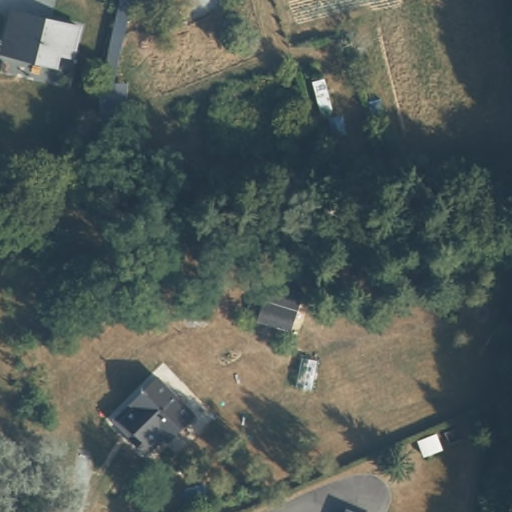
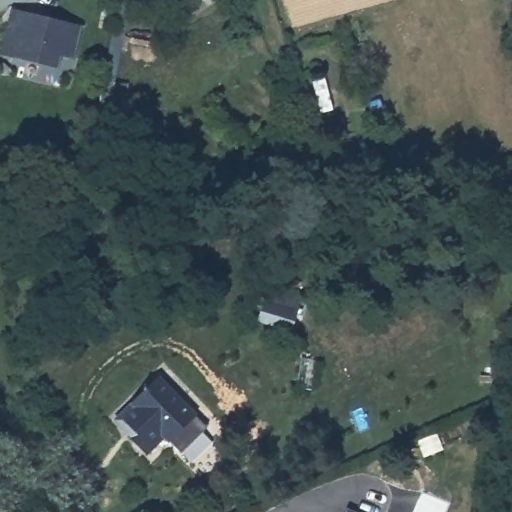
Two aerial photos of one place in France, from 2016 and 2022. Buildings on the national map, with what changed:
unchanged [(170,3),(150,0),(171,0),(170,3)]
unchanged [(79,20),(65,66),(0,51),(0,49),(11,6),(79,20)]
unchanged [(103,81),(128,81),(126,107),(118,107),(117,114),(99,112),(103,81)]
unchanged [(289,329),(255,318),(262,299),(267,282),(283,287),(300,293),(289,329)]
unchanged [(154,375),(185,416),(156,440),(153,435),(134,451),(120,433),(125,428),(115,414),(128,403),(124,398),(154,375)]
unchanged [(438,436),(444,450),(427,457),(421,443),(438,436)]
unchanged [(357,512),(346,512),(348,508),(357,512)]

